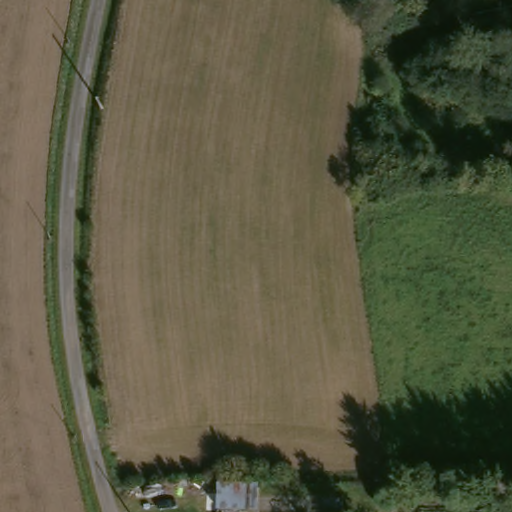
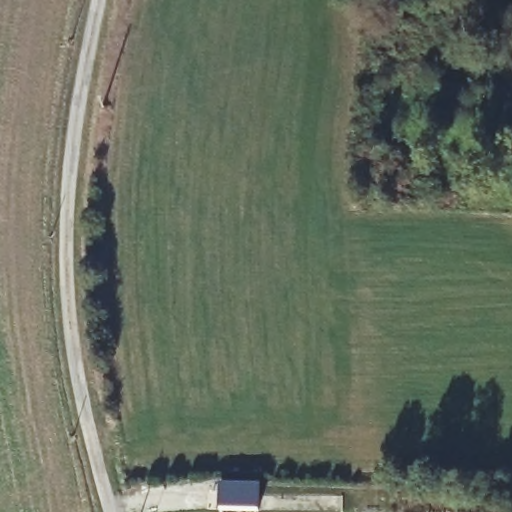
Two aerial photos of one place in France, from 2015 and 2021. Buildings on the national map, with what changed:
unchanged [(254,493),(254,512),(217,512),(217,492),(254,493)]

